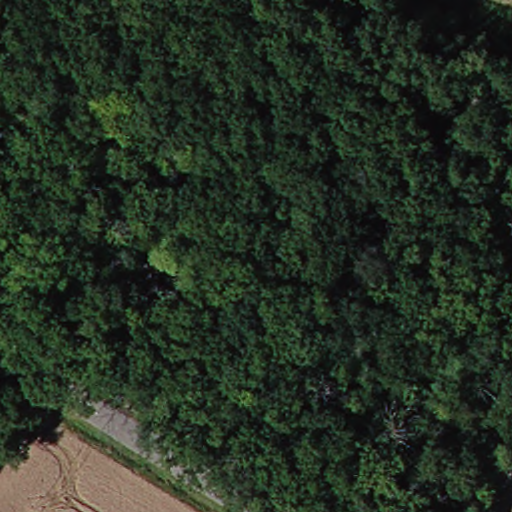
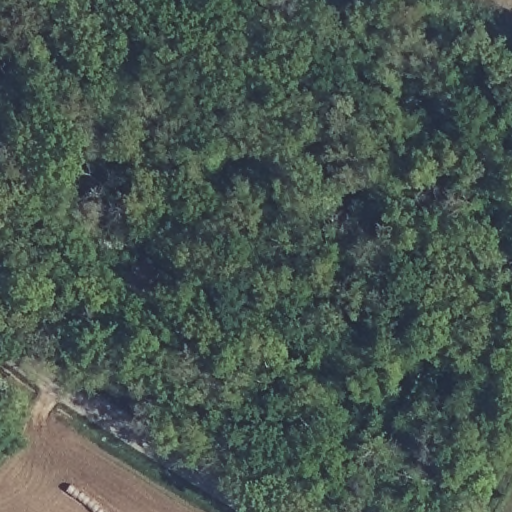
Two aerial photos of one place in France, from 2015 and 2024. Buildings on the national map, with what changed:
unchanged [(134,277),(157,291),(143,313),(122,300),(134,277)]

